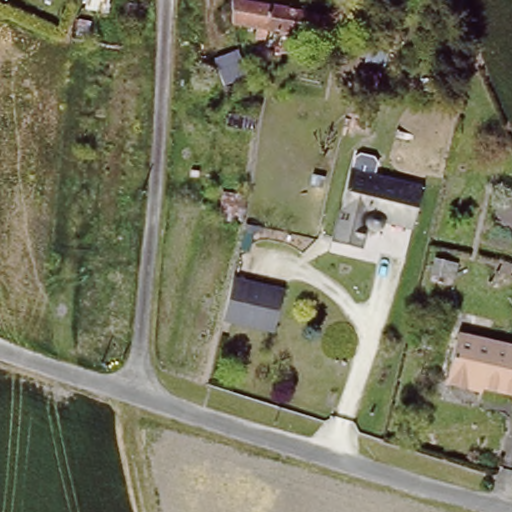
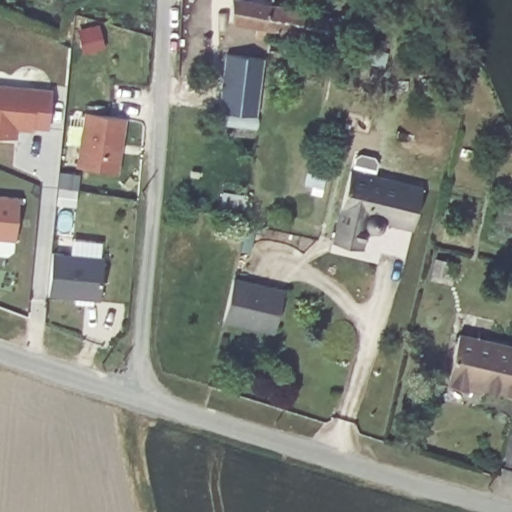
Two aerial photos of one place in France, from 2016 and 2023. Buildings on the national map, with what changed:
unchanged [(332,41),(287,32),(285,44),(282,43),(278,62),(267,60),(272,30),(270,29),(268,29),(267,38),(257,36),(258,26),(235,22),(233,0),(238,0),(273,7),(337,19),(332,41)]
new [(54,90),(50,129),(33,127),(33,131),(17,129),(17,137),(0,135),(0,84),(54,90)]
new [(87,113),(125,119),(118,171),(77,166),(87,113)]
unchanged [(350,172),(410,186),(400,226),(376,220),(372,225),(367,226),(363,245),(335,238),(350,172)]
new [(17,197),(13,239),(0,238),(0,195),(17,197)]
new [(103,256),(98,297),(48,294),(53,252),(103,256)]
unchanged [(282,294),(273,328),(225,317),(233,283),(282,294)]
unchanged [(460,337),(512,350),(512,398),(450,382),(460,337)]

